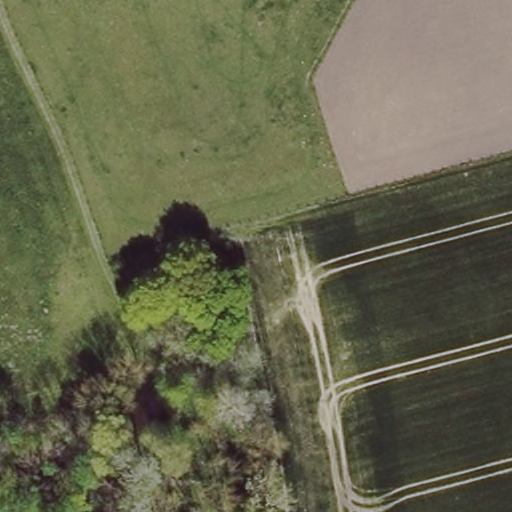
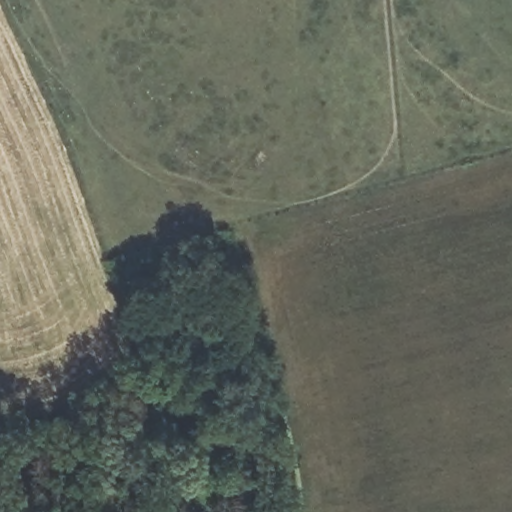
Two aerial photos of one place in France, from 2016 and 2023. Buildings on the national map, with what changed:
[]

